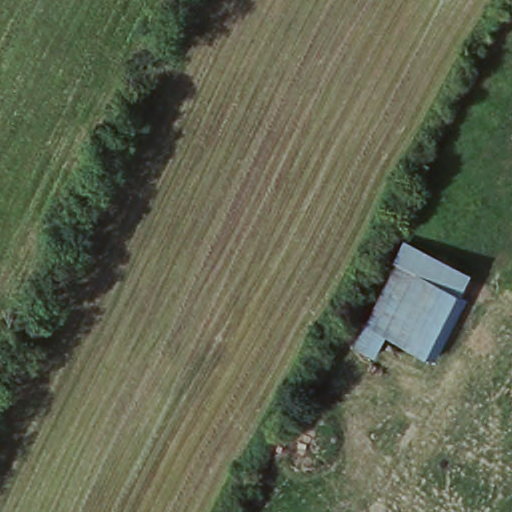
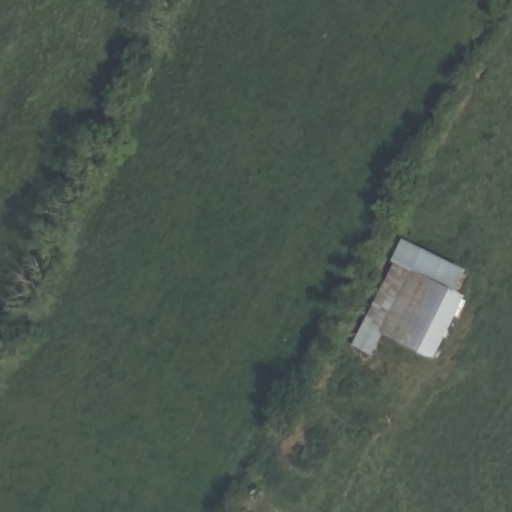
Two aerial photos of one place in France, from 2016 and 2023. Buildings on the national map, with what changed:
unchanged [(352,351),(403,241),(467,275),(457,295),(467,302),(438,361),(386,336),(373,362),(352,351)]

